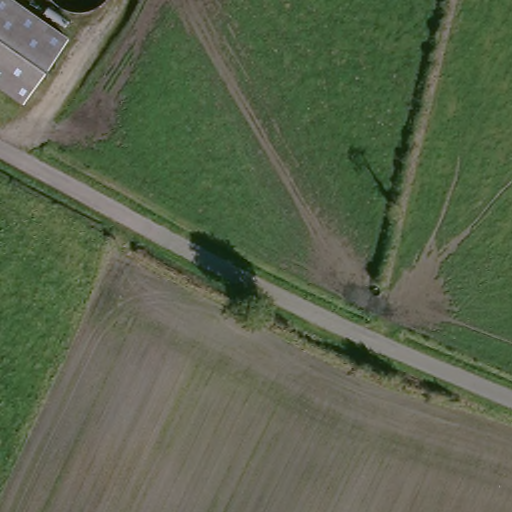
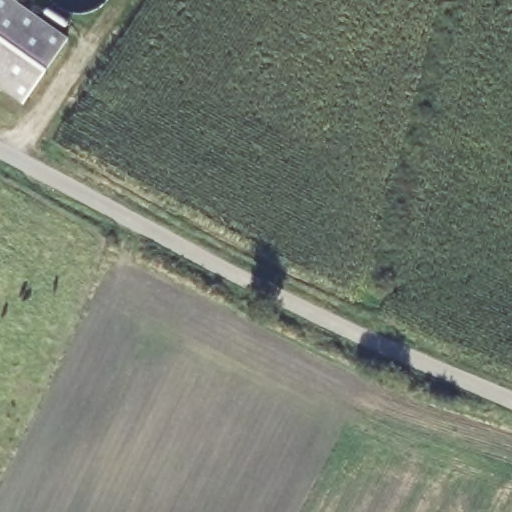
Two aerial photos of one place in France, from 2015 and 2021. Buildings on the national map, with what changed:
unchanged [(22,109),(0,92),(0,0),(5,0),(67,46),(22,109)]

